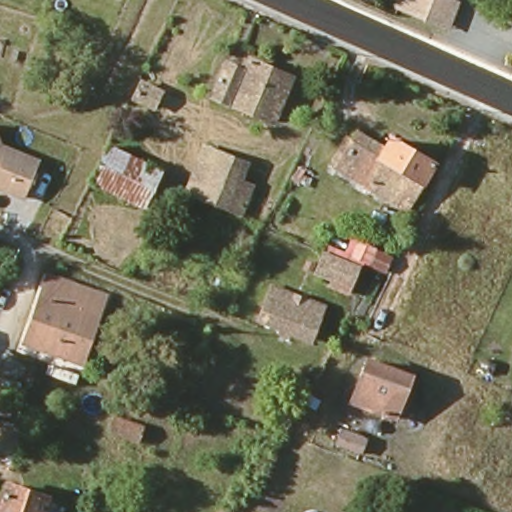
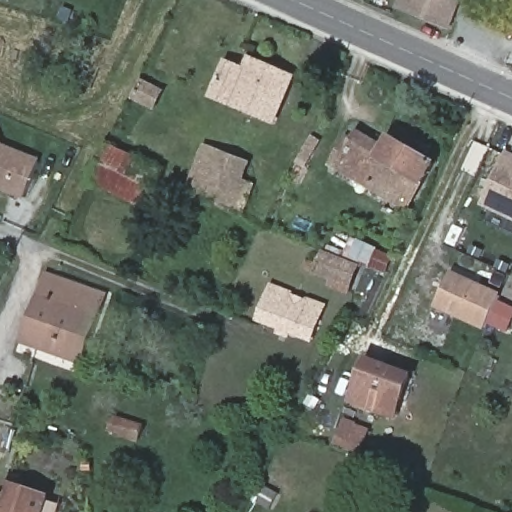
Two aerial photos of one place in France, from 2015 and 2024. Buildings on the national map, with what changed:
unchanged [(447,30),(437,26),(396,10),(400,0),(447,0),(457,4),(447,30)]
unchanged [(293,80),(274,123),(214,97),(228,65),(247,73),(252,63),(293,80)]
unchanged [(151,109),(131,99),(139,83),(159,92),(151,109)]
unchanged [(336,173),(338,168),(354,143),(359,134),(385,150),(395,135),(437,161),(408,209),(405,214),(336,173)]
unchanged [(1,145),(38,160),(23,201),(0,192),(0,142),(1,145)]
unchanged [(161,173),(145,209),(94,182),(111,148),(161,173)]
unchanged [(192,181),(205,149),(248,167),(241,184),(255,190),(243,217),(204,201),(187,193),(192,181)]
new [(506,151),(512,154),(512,221),(479,207),(506,151)]
unchanged [(346,251),(352,237),(393,256),(386,276),(326,252),(329,245),(346,251)]
unchanged [(347,294),(331,287),(333,281),(316,275),(323,257),(356,270),(347,294)]
new [(484,333),(434,309),(450,272),(501,294),(484,333)]
unchanged [(61,360),(22,345),(48,278),(104,299),(96,320),(77,367),(61,360)]
unchanged [(321,309),(308,340),(257,320),(266,297),(277,291),(321,309)]
unchanged [(409,378),(393,420),(351,403),(366,362),(409,378)]
unchanged [(117,453),(122,440),(108,434),(116,416),(143,427),(131,460),(117,453)]
unchanged [(366,440),(359,455),(335,446),(340,430),(366,440)]
demolished [(510,464),(512,464),(512,474),(509,474),(510,464)]
unchanged [(0,512),(0,496),(4,482),(46,496),(41,512),(0,512)]

